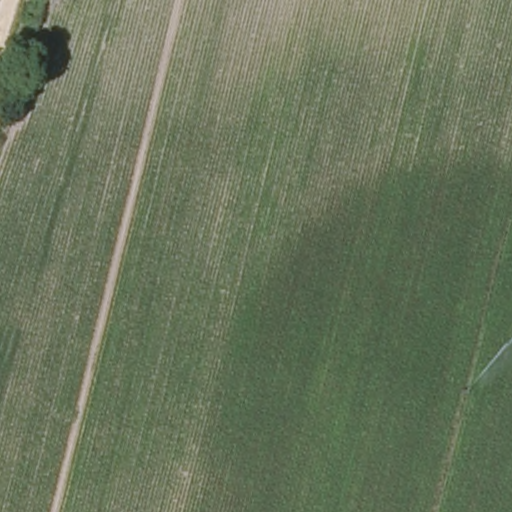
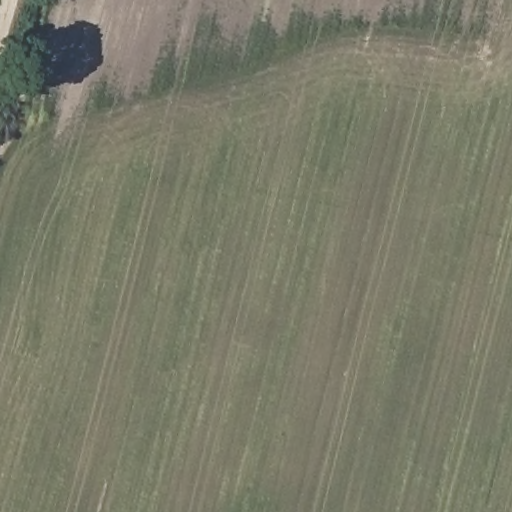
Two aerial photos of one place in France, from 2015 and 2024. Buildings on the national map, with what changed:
[]

